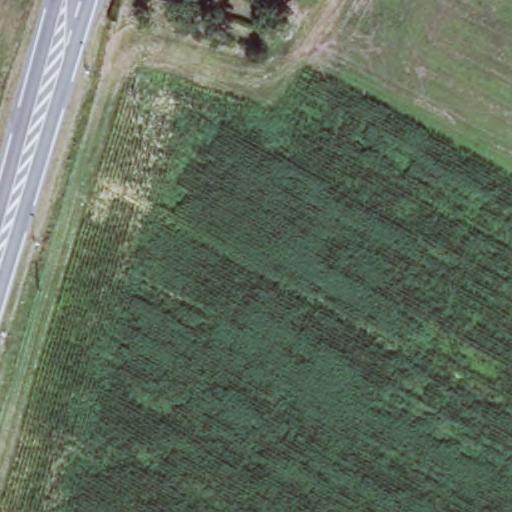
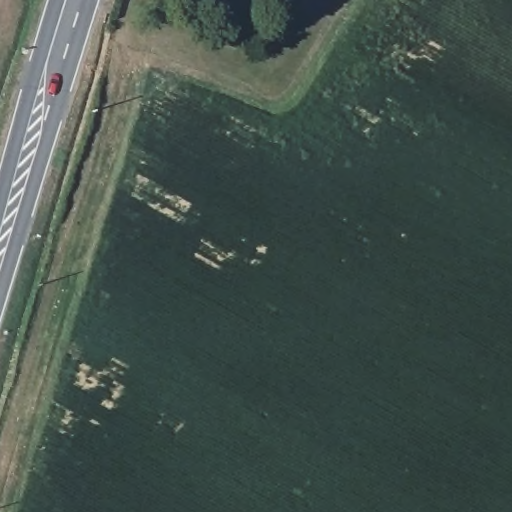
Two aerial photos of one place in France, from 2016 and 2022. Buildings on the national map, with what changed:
[]

